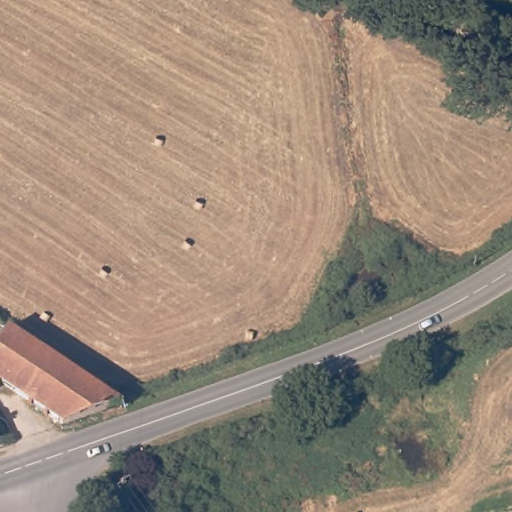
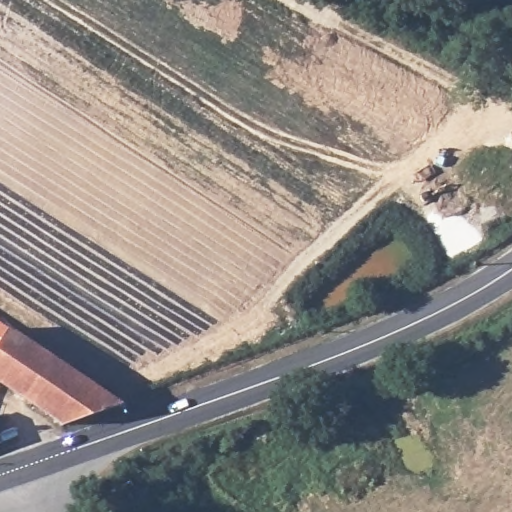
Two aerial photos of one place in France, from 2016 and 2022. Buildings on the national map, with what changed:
unchanged [(13,329),(123,405),(66,426),(0,380),(0,319),(13,329)]

